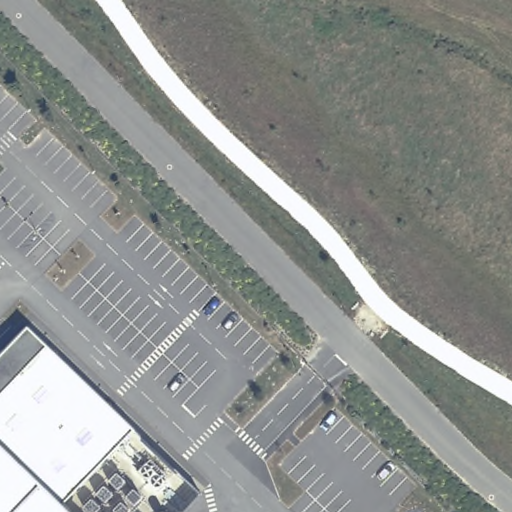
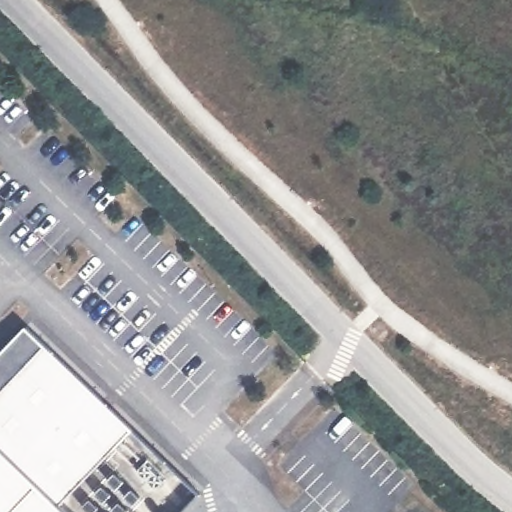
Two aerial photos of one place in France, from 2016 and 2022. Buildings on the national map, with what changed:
unchanged [(28,325),(135,428),(64,505),(72,512),(0,512),(0,355),(28,325)]

